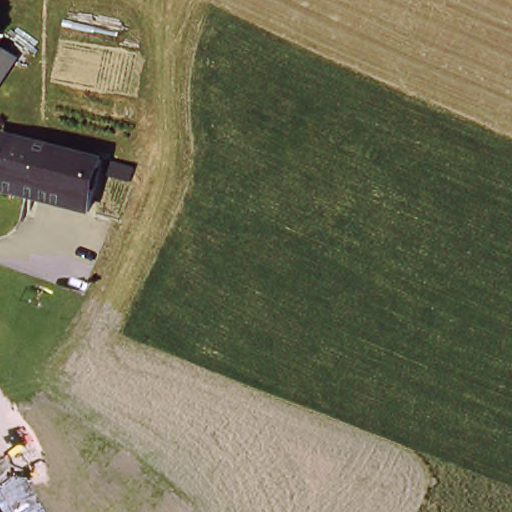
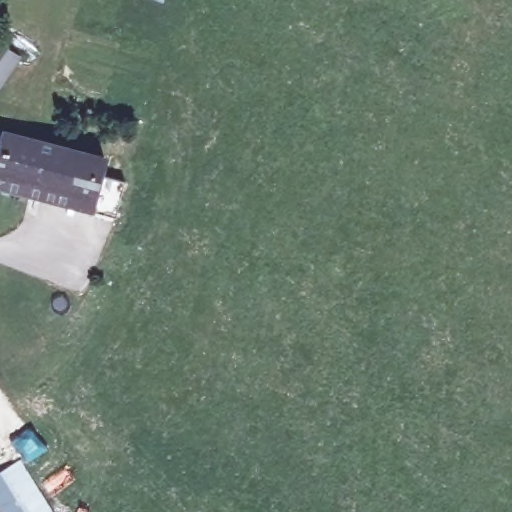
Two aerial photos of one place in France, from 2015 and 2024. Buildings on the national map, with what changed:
unchanged [(2,41),(20,57),(0,82),(0,44),(2,41)]
unchanged [(8,133),(107,151),(98,196),(0,177),(0,174),(8,133)]
new [(53,512),(0,512),(0,471),(20,458),(53,512)]
demolished [(51,512),(10,512),(0,495),(0,482),(24,467),(51,512)]

